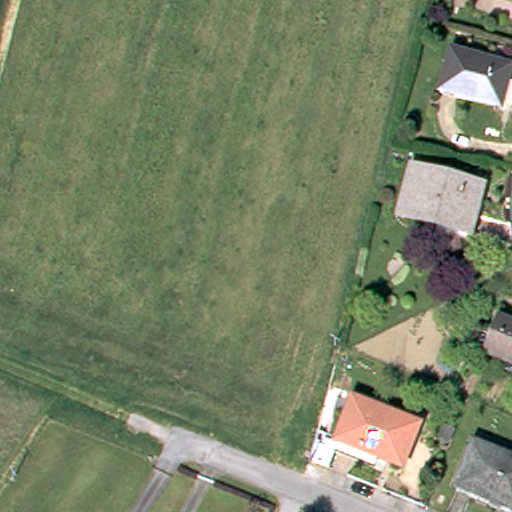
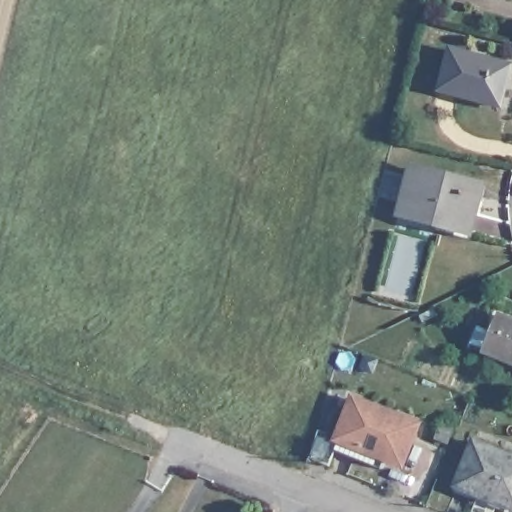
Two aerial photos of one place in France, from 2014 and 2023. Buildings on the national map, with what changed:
unchanged [(510,63),(499,104),(438,89),(450,46),(510,63)]
unchanged [(477,184),(465,230),(399,212),(411,166),(477,184)]
unchanged [(512,364),(482,352),(495,319),(512,326),(512,364)]
unchanged [(419,426),(404,465),(382,456),(377,467),(339,451),(359,403),(419,426)]
unchanged [(512,505),(454,481),(472,440),(512,456),(512,505)]

